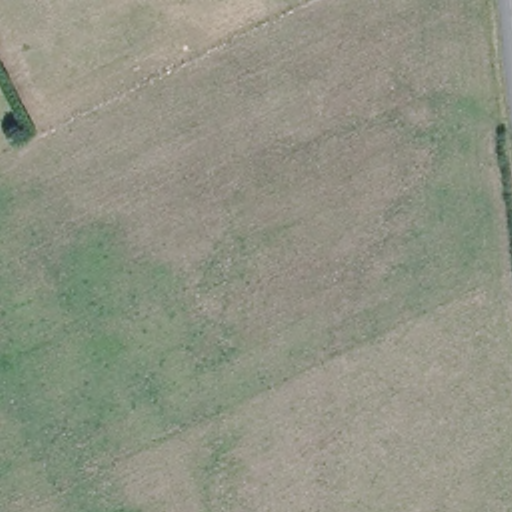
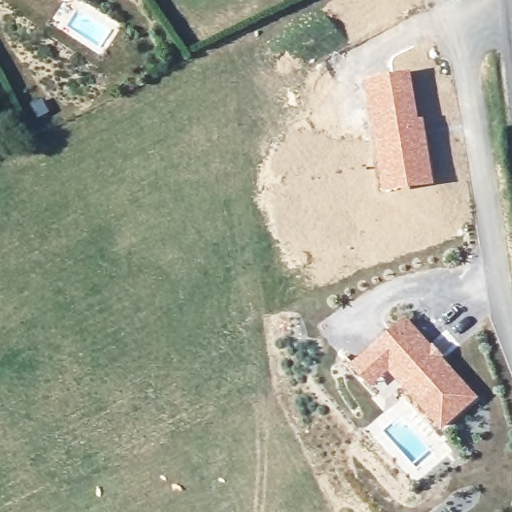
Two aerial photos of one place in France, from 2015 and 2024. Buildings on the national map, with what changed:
new [(410,71),(419,118),(423,118),(433,185),(381,192),(363,81),(410,71)]
new [(478,398),(441,431),(390,373),(370,389),(349,366),(405,317),(478,398)]

